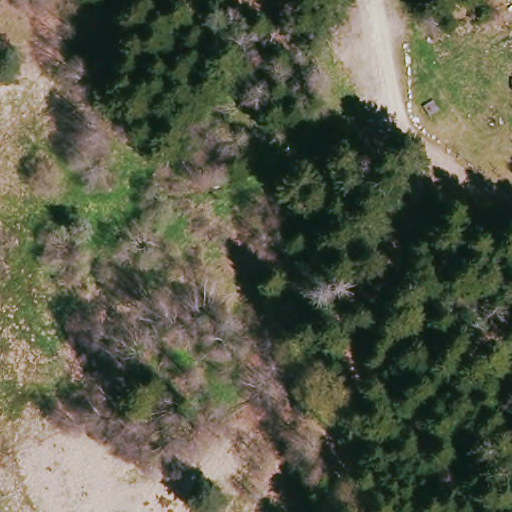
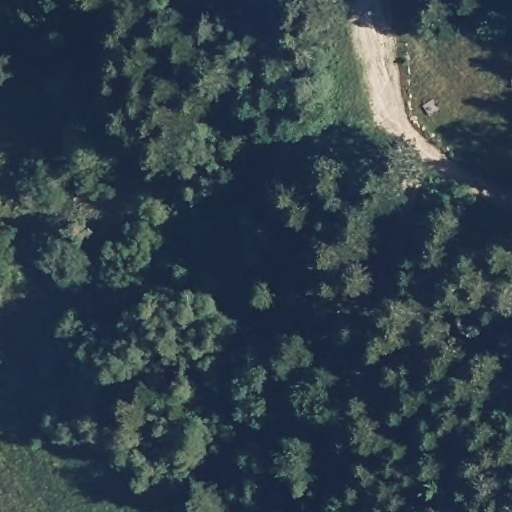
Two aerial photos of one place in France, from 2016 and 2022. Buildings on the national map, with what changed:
unchanged [(315,171),(311,164),(319,159),(323,166),(315,171)]

